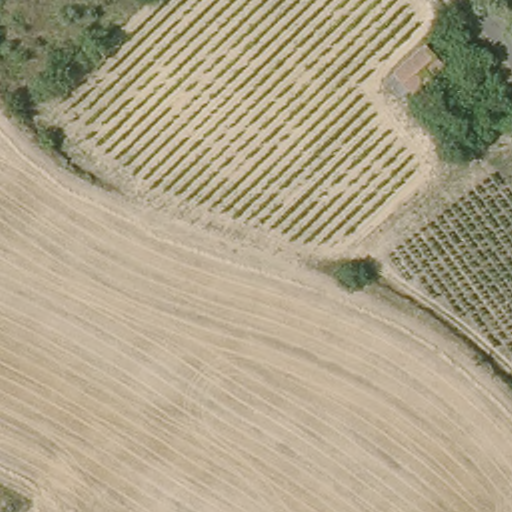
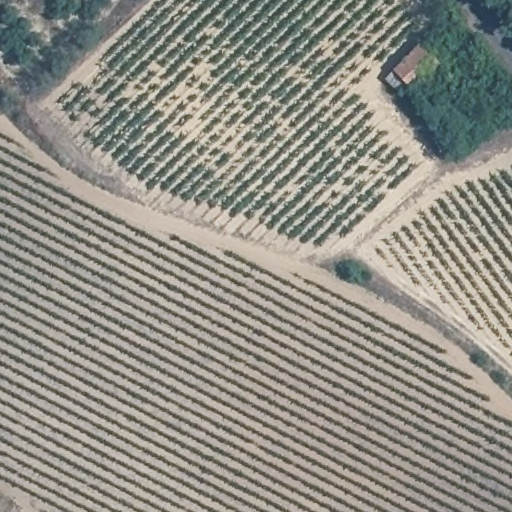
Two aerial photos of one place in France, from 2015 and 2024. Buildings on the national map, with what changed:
unchanged [(426,41),(442,61),(427,76),(420,81),(402,64),(408,58),(426,41)]

